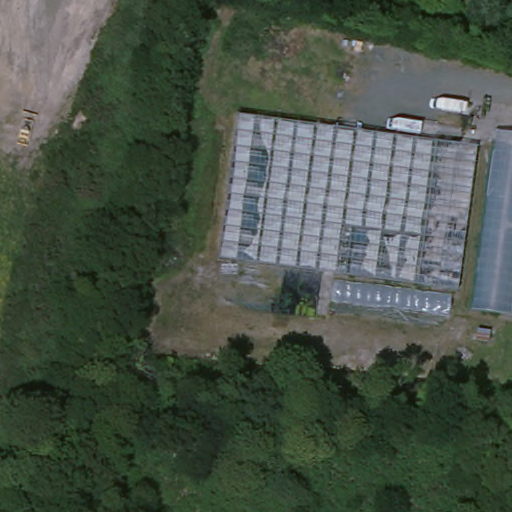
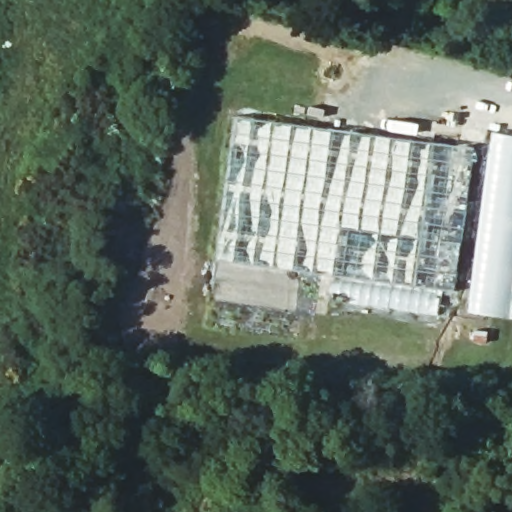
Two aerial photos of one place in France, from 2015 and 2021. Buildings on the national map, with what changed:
unchanged [(415,304),(338,295),(342,271),(219,256),(238,110),(438,132),(415,304)]
unchanged [(466,310),(491,129),(512,132),(512,317),(466,310)]
unchanged [(415,304),(438,132),(464,136),(440,309),(415,304)]

